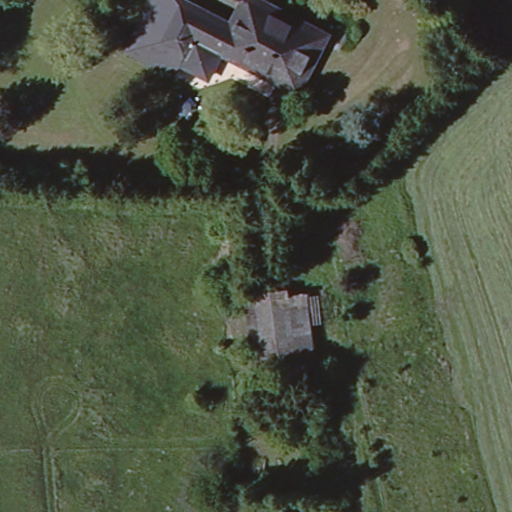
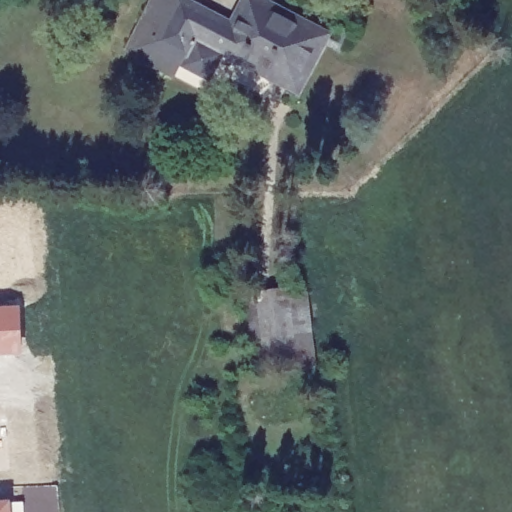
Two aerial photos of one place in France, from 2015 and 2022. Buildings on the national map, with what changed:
unchanged [(221,52),(225,75),(189,85),(181,61),(173,70),(126,50),(150,0),(202,0),(230,14),(239,0),(279,0),(335,27),(296,89),(221,52)]
unchanged [(251,353),(247,293),(294,287),(297,331),(310,330),(312,367),(257,373),(251,353)]
new [(21,356),(0,356),(0,308),(18,308),(21,356)]
new [(0,505),(24,503),(24,512),(0,512),(0,505)]

